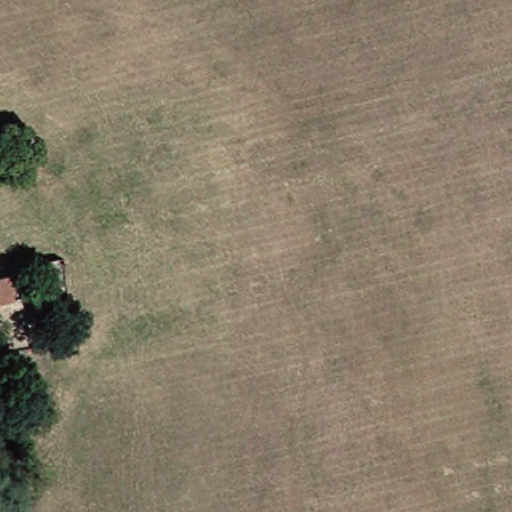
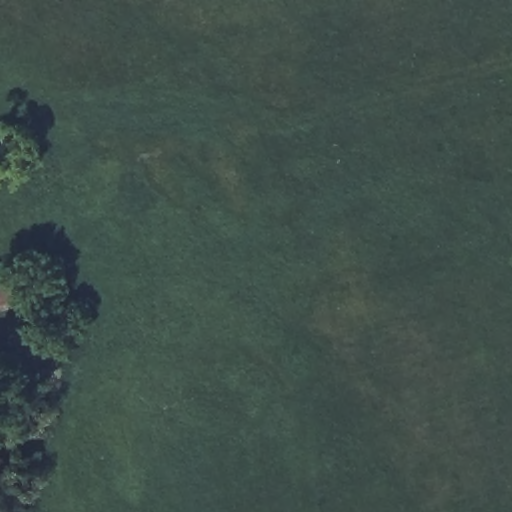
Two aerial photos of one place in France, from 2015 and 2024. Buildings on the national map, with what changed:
unchanged [(7,303),(0,304),(0,279),(3,278),(7,303)]

